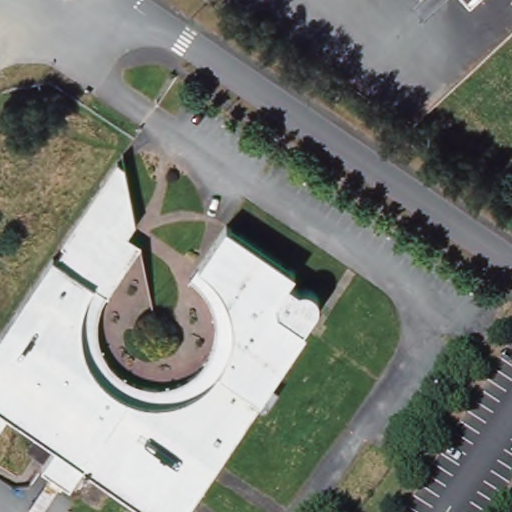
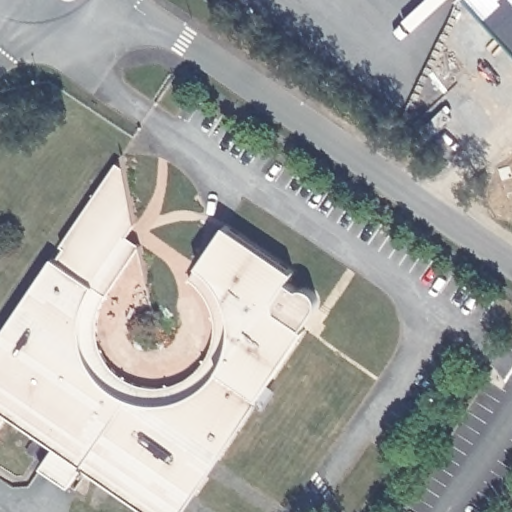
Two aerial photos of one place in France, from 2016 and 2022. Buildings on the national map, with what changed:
unchanged [(100,309),(97,320),(97,332),(100,342),(104,353),(109,363),(117,372),(127,379),(139,384),(150,386),(161,387),(173,385),(185,380),(198,371),(206,362),(212,354),(216,343),(218,333),(218,324),(217,315),(215,306),(211,298),(206,290),(200,283),(192,277),(228,224),(296,271),(290,280),(300,287),(306,285),(311,286),(315,288),(318,291),(321,295),(321,300),(319,306),(305,327),(307,328),(180,512),(153,512),(84,465),(69,486),(42,467),(56,446),(9,414),(0,428),(0,336),(54,258),(57,260),(66,248),(62,246),(84,214),(119,163),(127,168),(137,222),(129,235),(142,244),(126,267),(104,299),(100,309)]

